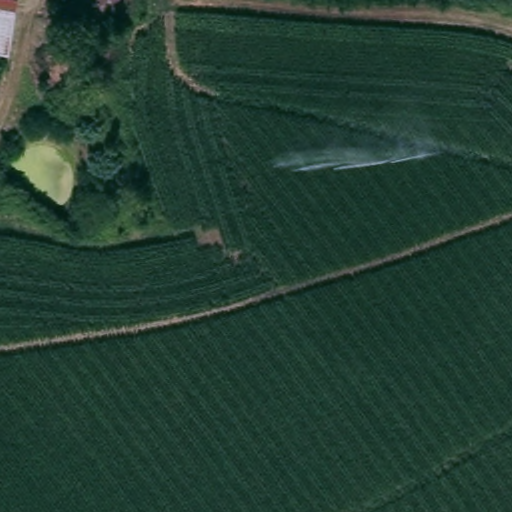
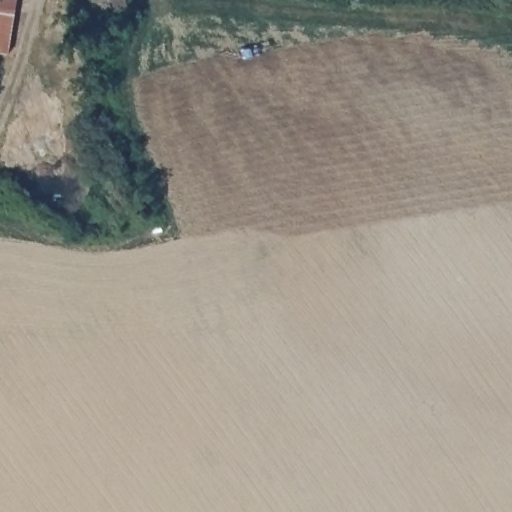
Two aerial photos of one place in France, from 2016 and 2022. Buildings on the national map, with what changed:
unchanged [(0,55),(0,0),(11,0),(18,1),(8,56),(0,55)]
unchanged [(118,16),(113,16),(113,8),(93,8),(93,0),(125,0),(125,16),(118,16)]

